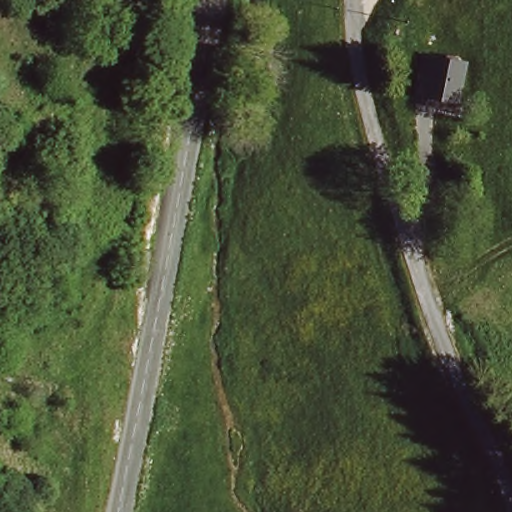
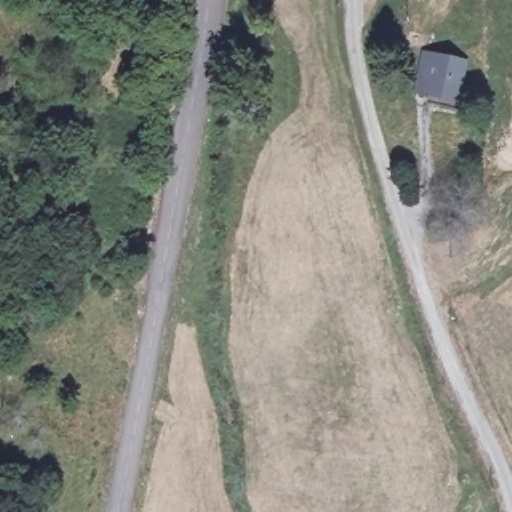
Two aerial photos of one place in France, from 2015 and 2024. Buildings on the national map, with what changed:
unchanged [(455,63),(449,100),(405,90),(412,53),(455,63)]

